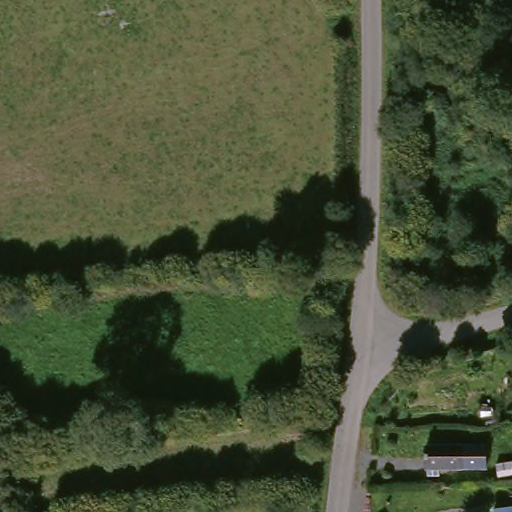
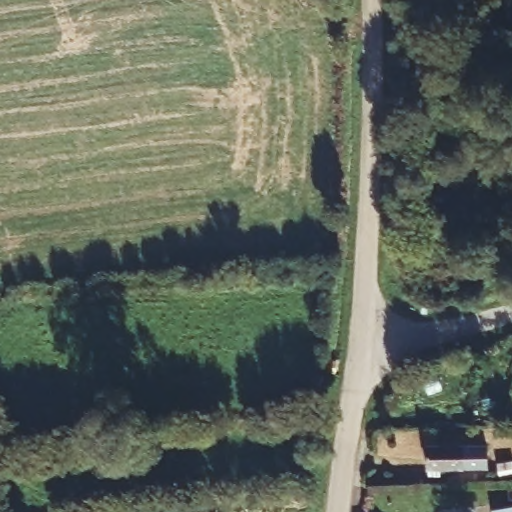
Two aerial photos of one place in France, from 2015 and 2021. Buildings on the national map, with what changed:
unchanged [(420,470),(420,447),(455,448),(455,471),(420,470)]
unchanged [(512,493),(512,512),(491,512),(490,494),(512,493)]

